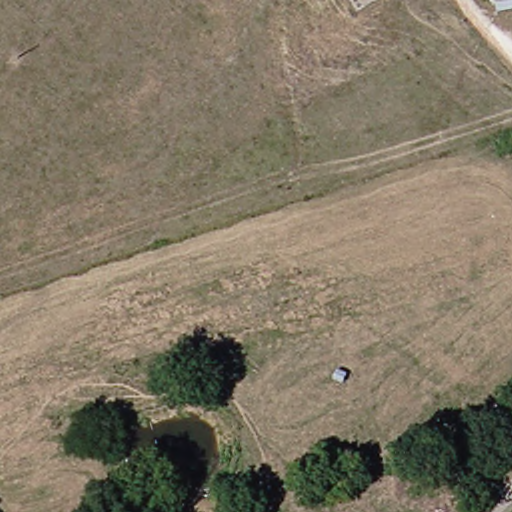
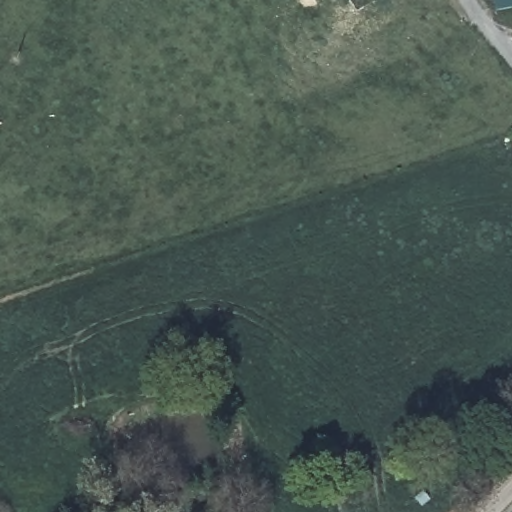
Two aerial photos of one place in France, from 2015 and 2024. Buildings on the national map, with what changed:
unchanged [(499,0),(512,0),(512,14),(501,16),(499,0)]

